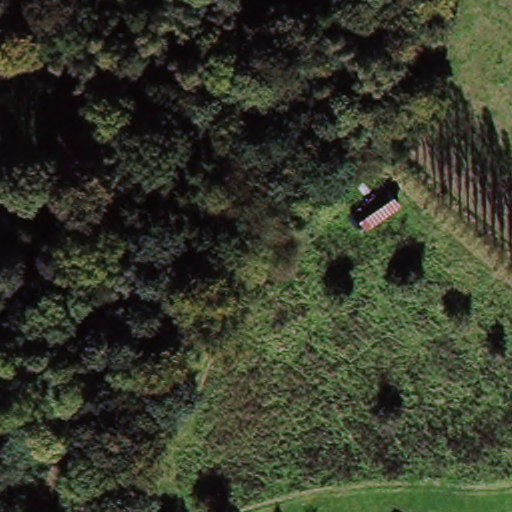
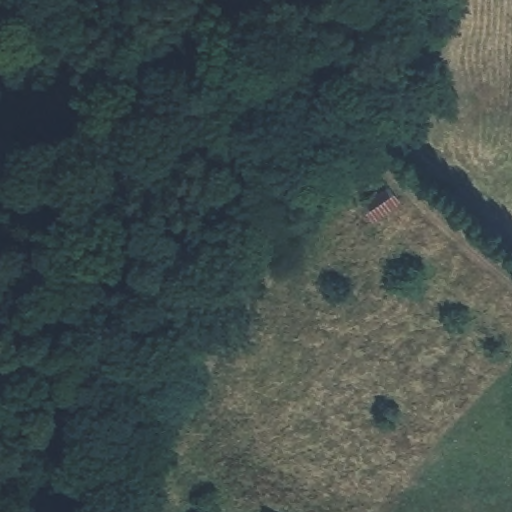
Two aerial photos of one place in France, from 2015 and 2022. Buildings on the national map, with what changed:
unchanged [(386,193),(397,208),(360,233),(349,219),(386,193)]

